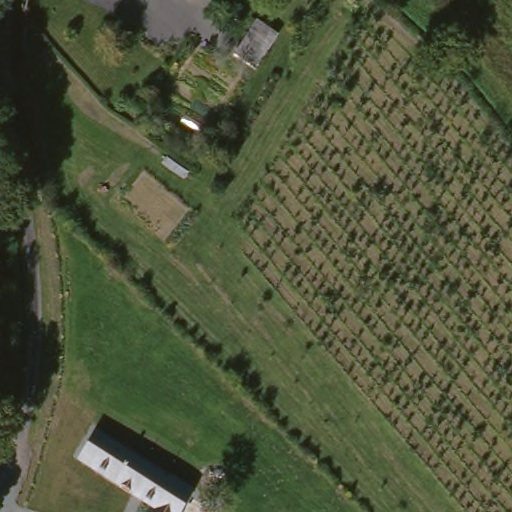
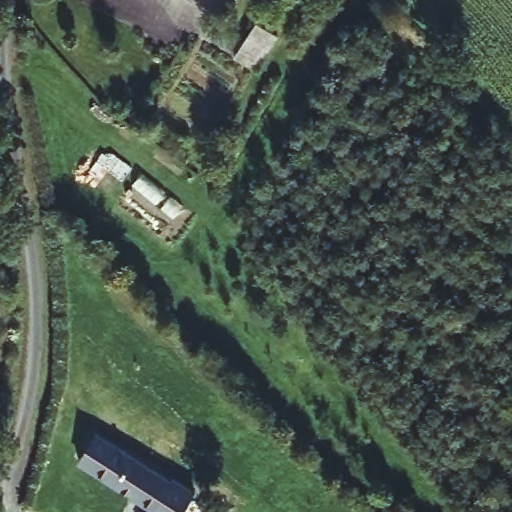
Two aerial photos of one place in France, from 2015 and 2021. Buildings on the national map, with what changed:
unchanged [(260,21),(279,37),(254,69),(234,54),(260,21)]
unchanged [(90,438),(172,483),(174,480),(195,492),(183,512),(159,512),(79,460),(90,438)]

